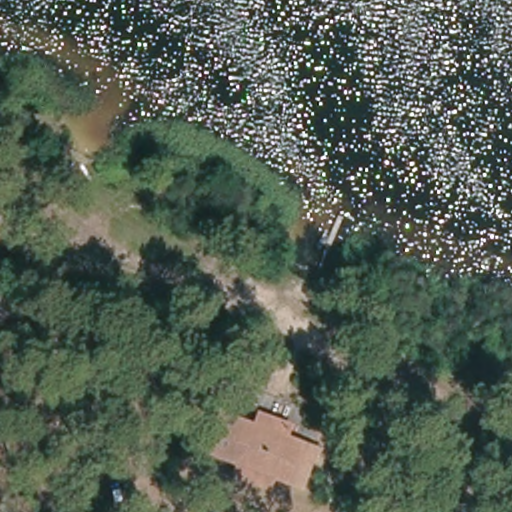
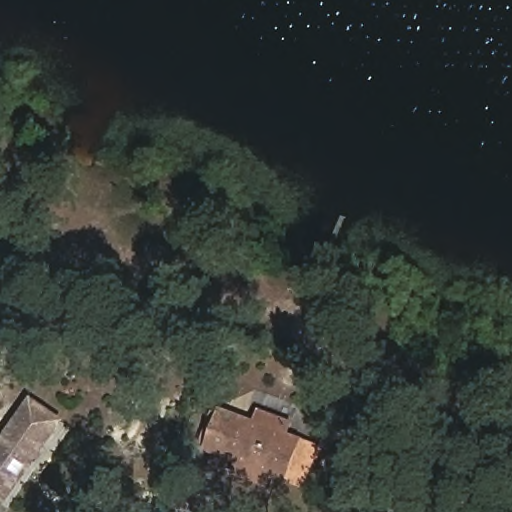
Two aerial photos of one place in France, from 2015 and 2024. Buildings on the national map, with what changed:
new [(65,421),(6,503),(0,498),(0,439),(29,396),(65,421)]
unchanged [(240,475),(244,465),(206,450),(221,410),(257,426),(262,412),(292,423),(288,435),(320,448),(306,487),(275,476),(270,486),(240,475)]

